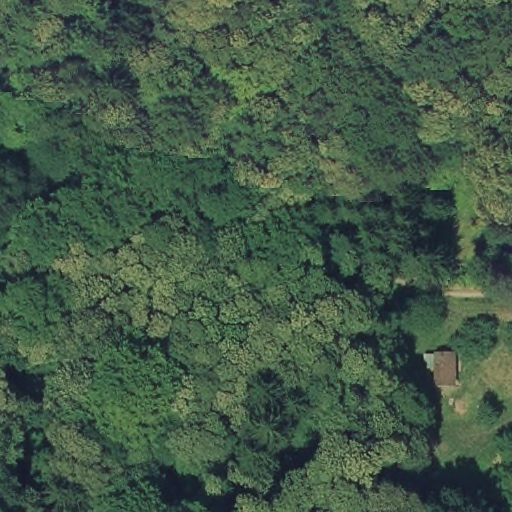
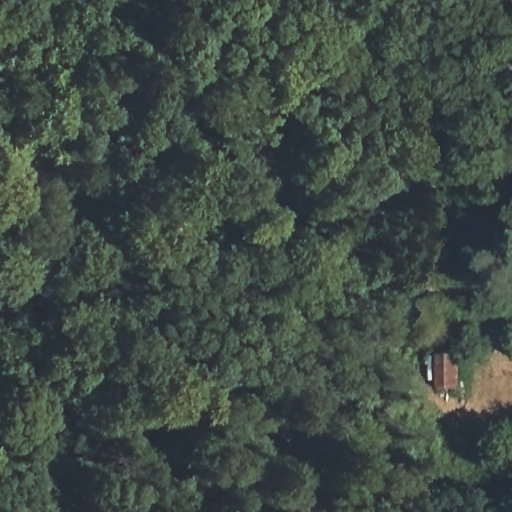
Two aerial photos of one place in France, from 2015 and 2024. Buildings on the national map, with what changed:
unchanged [(471,174),(476,150),(499,155),(494,179),(471,174)]
unchanged [(463,395),(438,394),(437,354),(460,353),(463,395)]

